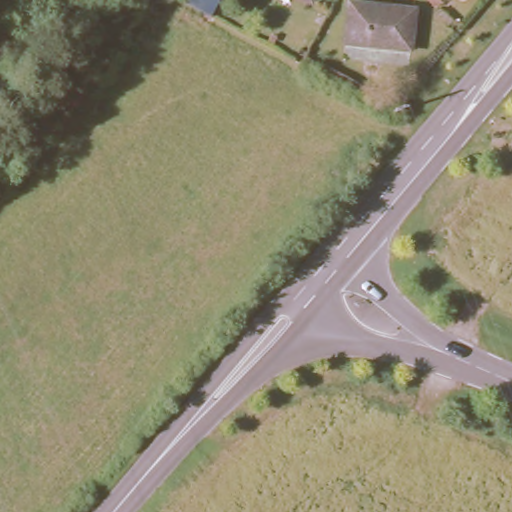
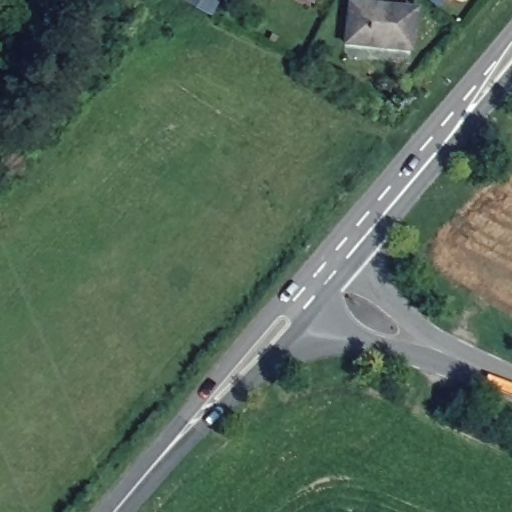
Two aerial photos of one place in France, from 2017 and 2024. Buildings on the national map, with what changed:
unchanged [(311,0),(314,0),(313,2),(311,0)]
unchanged [(413,9),(410,51),(345,44),(349,2),(413,9)]

